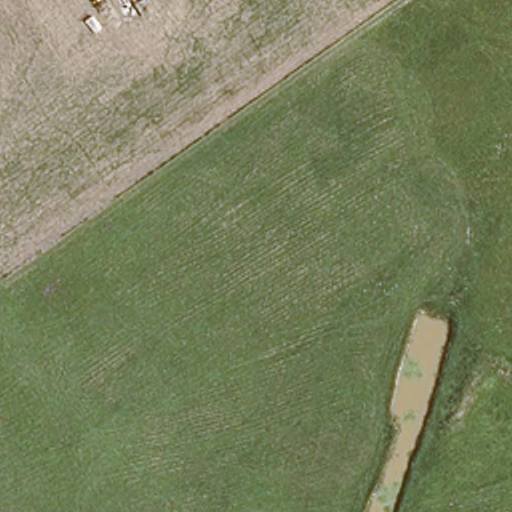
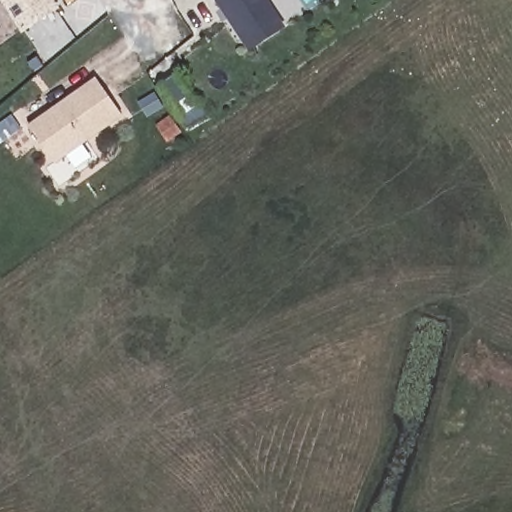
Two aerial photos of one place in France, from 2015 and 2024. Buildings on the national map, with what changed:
new [(20,32),(0,0),(54,0),(59,9),(20,32)]
new [(285,28),(248,52),(215,0),(267,0),(285,28)]
new [(54,164),(29,125),(95,78),(122,117),(54,164)]

